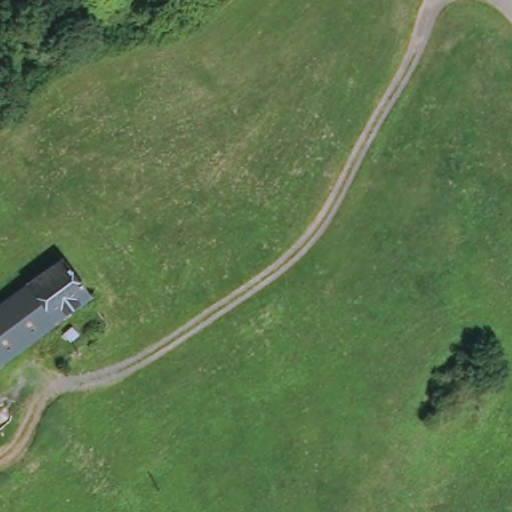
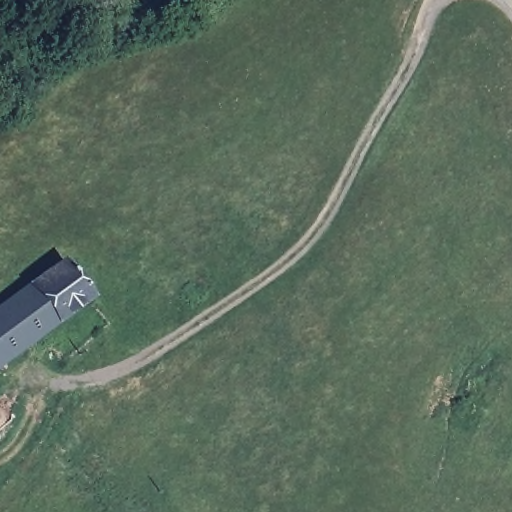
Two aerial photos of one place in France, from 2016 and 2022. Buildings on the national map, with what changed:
unchanged [(0,309),(67,258),(98,297),(0,374),(0,309)]

